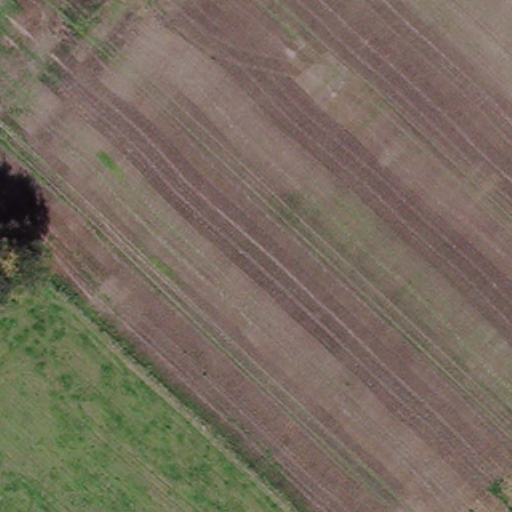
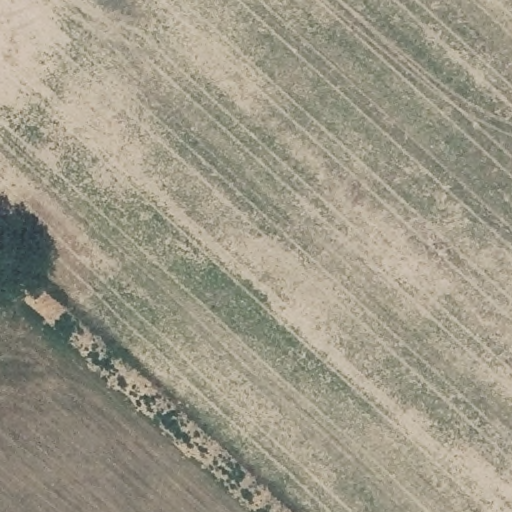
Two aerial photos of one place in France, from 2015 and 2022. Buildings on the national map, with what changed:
[]

